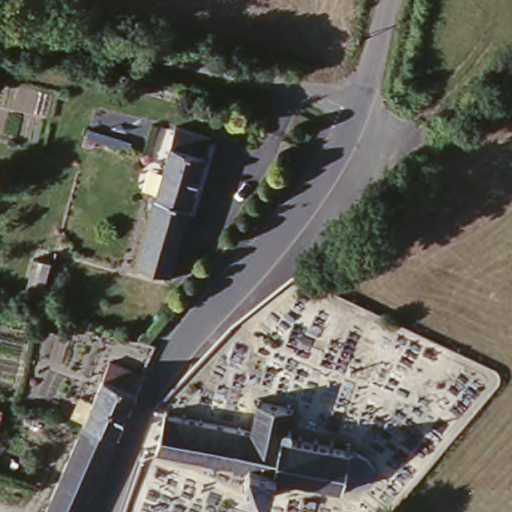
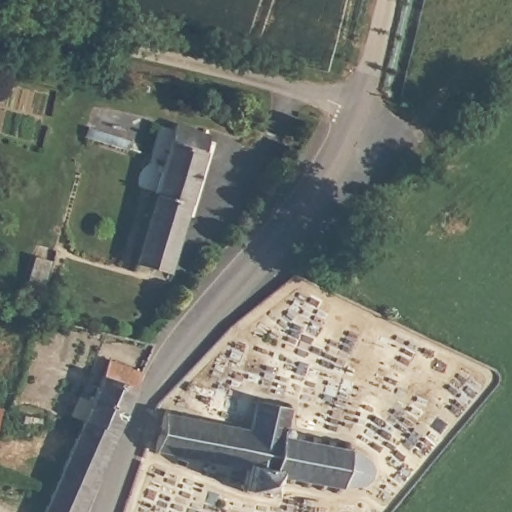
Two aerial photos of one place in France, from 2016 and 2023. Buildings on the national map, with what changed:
unchanged [(133,265),(165,152),(172,121),(207,130),(169,272),(142,266),(133,265)]
unchanged [(28,250),(45,254),(37,285),(20,281),(28,250)]
unchanged [(119,421),(112,434),(85,423),(108,361),(143,372),(119,421)]
unchanged [(254,430),(258,401),(288,409),(283,435),(346,445),(358,448),(366,455),(375,462),(377,468),(375,474),(356,483),(343,481),(336,485),(274,475),(270,492),(245,489),(249,470),(157,458),(165,416),(254,430)]
unchanged [(0,420),(0,408),(2,408),(0,420)]
unchanged [(90,488),(80,512),(45,512),(85,423),(112,434),(95,475),(90,488)]

